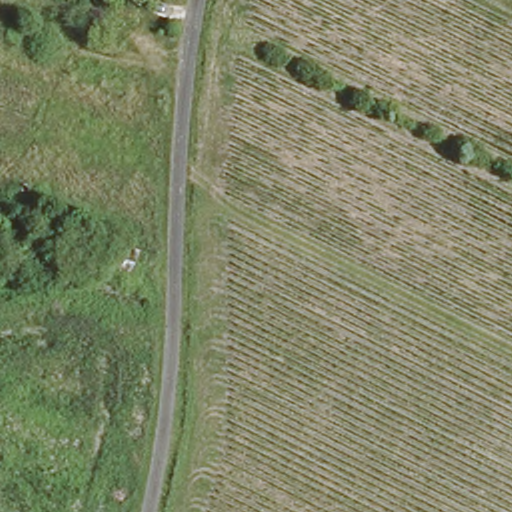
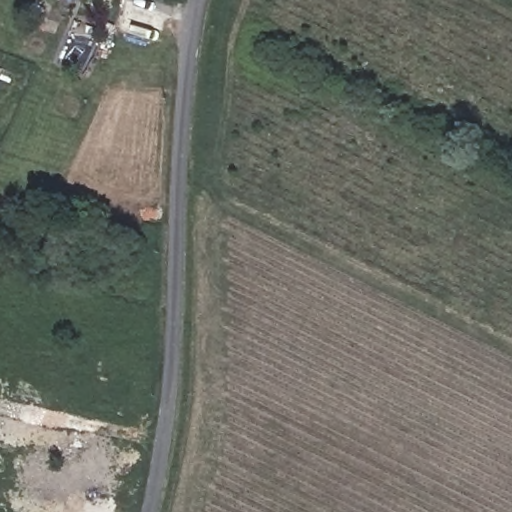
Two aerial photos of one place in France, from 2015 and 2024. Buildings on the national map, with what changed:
[]

